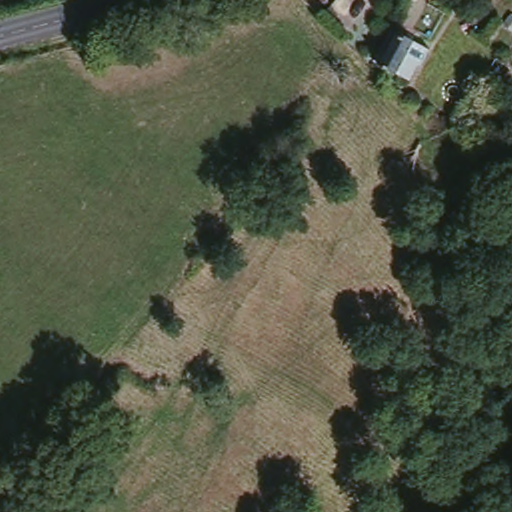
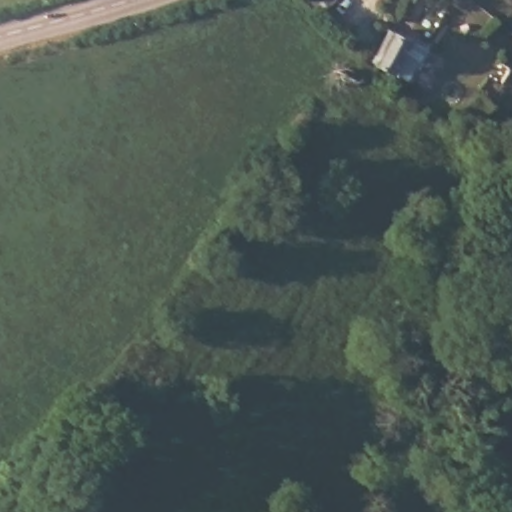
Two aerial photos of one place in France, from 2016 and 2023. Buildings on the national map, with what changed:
unchanged [(398,29),(415,41),(392,71),(375,59),(398,28),(398,29)]

